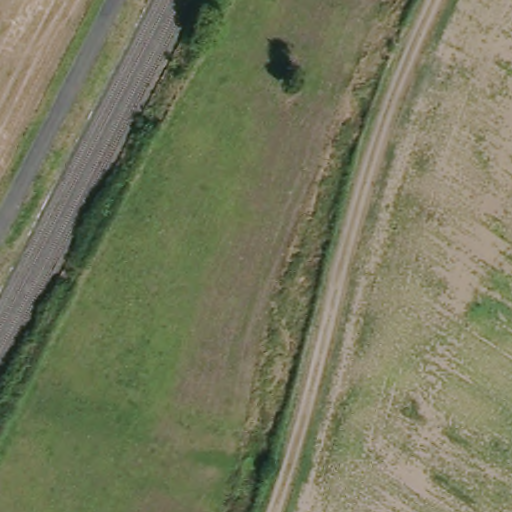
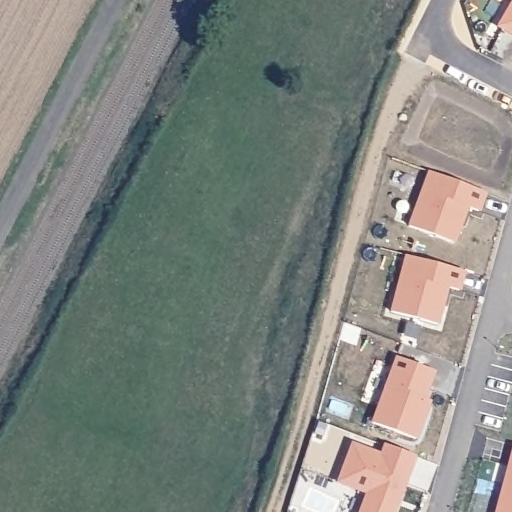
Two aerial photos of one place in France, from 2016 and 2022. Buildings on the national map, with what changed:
new [(429,172),(485,192),(478,210),(467,205),(453,242),(412,230),(429,172)]
new [(406,255),(464,270),(459,289),(447,286),(437,324),(390,312),(406,255)]
new [(396,357),(434,371),(420,406),(426,409),(414,439),(371,423),(396,357)]
new [(348,443),(362,448),(366,438),(414,456),(393,512),(344,512),(354,488),(334,480),(348,443)]
new [(512,451),(512,512),(495,512),(512,451)]

